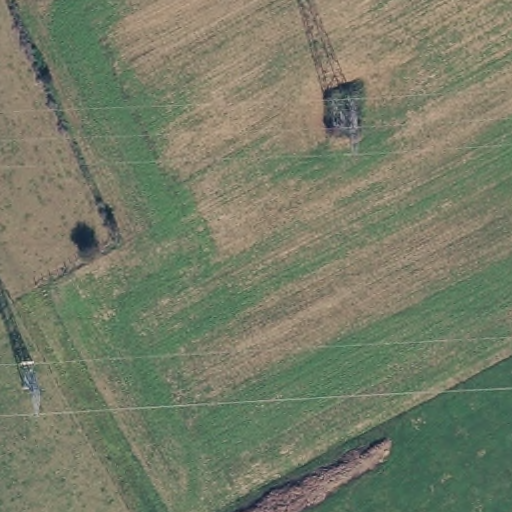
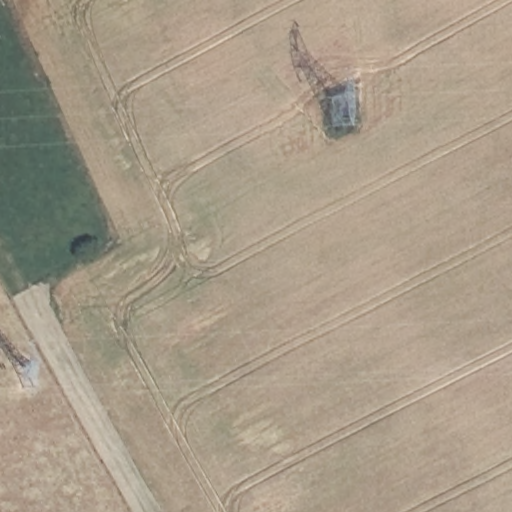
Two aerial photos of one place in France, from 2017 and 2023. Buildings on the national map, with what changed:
[]

